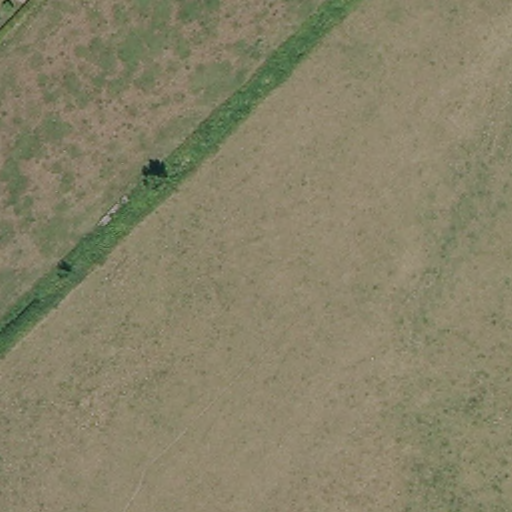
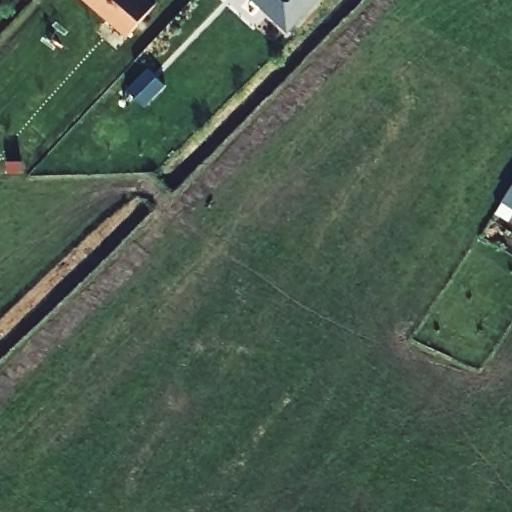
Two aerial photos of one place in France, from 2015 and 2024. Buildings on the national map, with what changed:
new [(155,5),(128,36),(87,0),(150,0),(155,5)]
new [(288,30),(256,0),(316,0),(288,30)]

